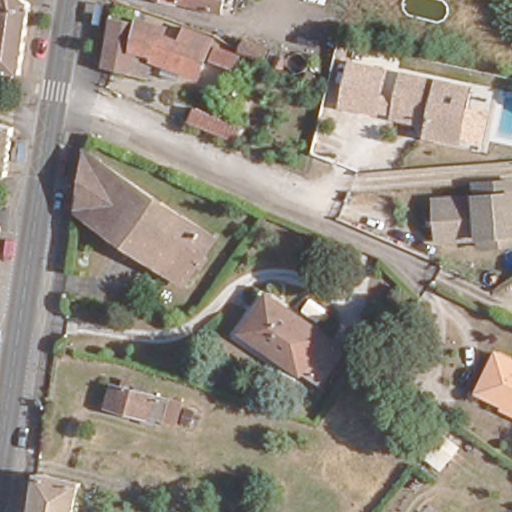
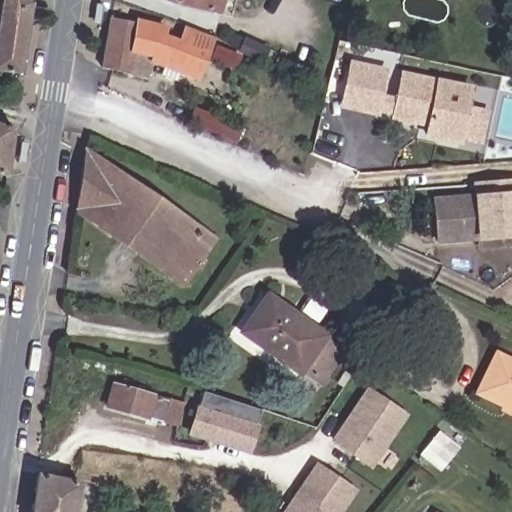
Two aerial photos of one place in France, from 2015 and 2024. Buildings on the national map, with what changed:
unchanged [(19,70),(0,67),(0,0),(27,0),(28,1),(19,70)]
unchanged [(182,4),(172,0),(219,0),(217,11),(182,4)]
unchanged [(200,76),(154,62),(151,80),(98,70),(105,16),(130,20),(131,14),(167,21),(165,32),(177,35),(182,20),(210,30),(208,42),(202,65),(200,76)]
unchanged [(271,42),(291,51),(283,72),(261,65),(239,57),(235,74),(202,65),(208,42),(240,49),(243,40),(266,46),(270,47),(271,42)]
unchanged [(385,91),(396,94),(392,119),(340,110),(350,60),(390,67),(385,91)]
unchanged [(475,87),(461,145),(425,138),(427,127),(392,119),(396,94),(400,72),(475,87)]
unchanged [(242,126),(236,141),(189,120),(195,107),(242,126)]
unchanged [(0,121),(11,124),(5,172),(0,171),(0,121)]
unchanged [(79,190),(86,151),(197,227),(190,236),(206,247),(184,281),(76,209),(79,190)]
unchanged [(473,195),(472,181),(512,178),(512,250),(478,254),(479,248),(476,239),(436,242),(432,197),(473,195)]
unchanged [(268,295),(325,335),(322,338),(340,351),(320,380),(301,367),(299,371),(242,331),(268,295)]
unchanged [(471,390),(491,350),(512,361),(512,409),(471,390)]
unchanged [(109,380),(176,400),(170,420),(102,400),(109,380)]
new [(367,387),(410,415),(372,468),(330,441),(367,387)]
new [(196,405),(260,425),(250,455),(188,436),(196,405)]
new [(441,431),(461,447),(449,462),(429,446),(441,431)]
demolished [(217,462),(221,452),(256,466),(251,478),(240,472),(217,462)]
new [(315,463),(356,490),(342,512),(282,512),(315,463)]
unchanged [(37,473),(80,483),(73,512),(31,512),(37,473)]

